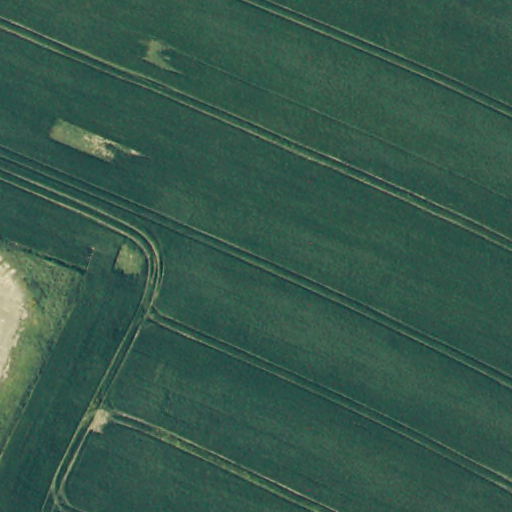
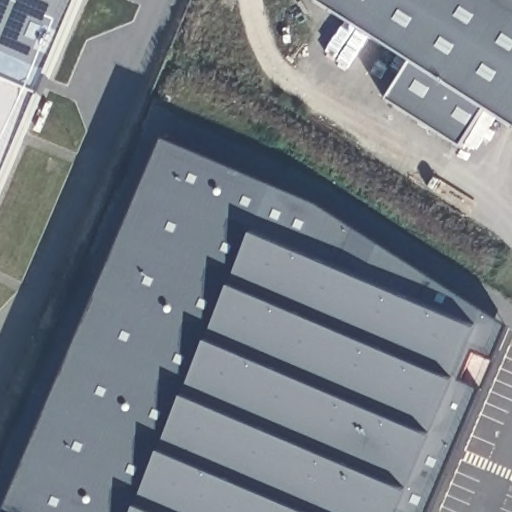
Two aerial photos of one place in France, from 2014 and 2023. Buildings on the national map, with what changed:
new [(512,128),(317,2),(318,0),(512,0),(512,128)]
new [(385,100),(410,62),(484,110),(459,147),(385,100)]
new [(41,97),(0,190),(0,79),(41,97)]
new [(3,512),(162,141),(321,209),(507,328),(427,512),(3,512)]

